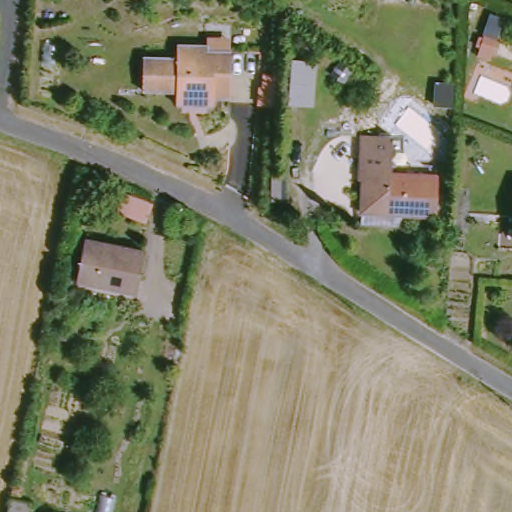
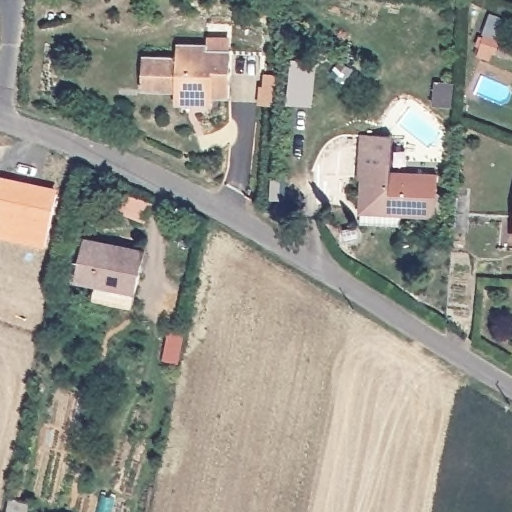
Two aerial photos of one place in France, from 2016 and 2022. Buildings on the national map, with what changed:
unchanged [(181,105),(181,97),(181,92),(149,92),(149,55),(183,56),(183,45),(214,45),(214,51),(236,51),(236,97),(219,97),(218,105),(181,105)]
unchanged [(409,216),(409,226),(371,225),(371,209),(372,184),(368,184),(368,164),(397,164),(397,175),(444,177),(443,218),(409,216)]
new [(29,182),(28,186),(54,191),(44,243),(0,233),(0,177),(29,182)]
unchanged [(80,286),(88,244),(148,255),(141,298),(80,286)]
unchanged [(30,502),(28,512),(9,512),(11,500),(30,502)]

